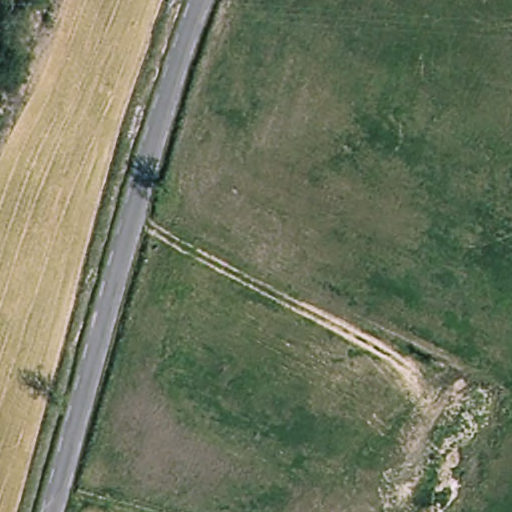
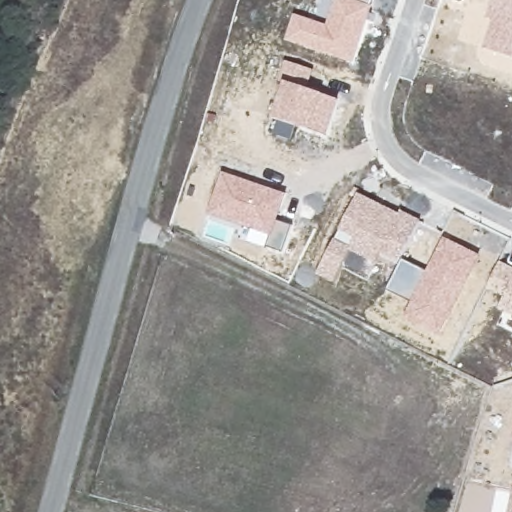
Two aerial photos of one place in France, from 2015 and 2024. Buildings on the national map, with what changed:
new [(373,6),(354,63),(288,41),(296,15),(328,25),(336,0),(373,0),(371,6),(373,6)]
new [(484,49),(494,22),(486,19),(492,0),(512,0),(512,59),(484,49)]
new [(327,136),(311,130),(274,117),(285,84),(279,81),(286,61),(316,71),(310,91),(323,95),(339,101),(327,136)]
new [(278,221),(294,227),(284,254),(268,248),(271,238),(208,215),(223,173),(286,195),(278,221)]
new [(402,212),(421,220),(399,264),(381,257),(378,264),(350,251),(335,284),(318,275),(359,193),(401,214),(402,212)]
new [(441,335),(406,318),(413,303),(388,290),(403,260),(428,273),(445,238),(480,255),(441,335)]
new [(499,309),(504,297),(487,288),(499,262),(512,268),(512,316),(499,309)]
new [(512,500),(512,512),(509,512),(512,500)]

